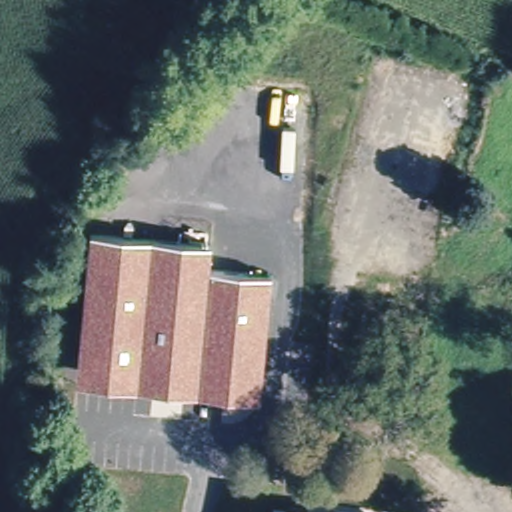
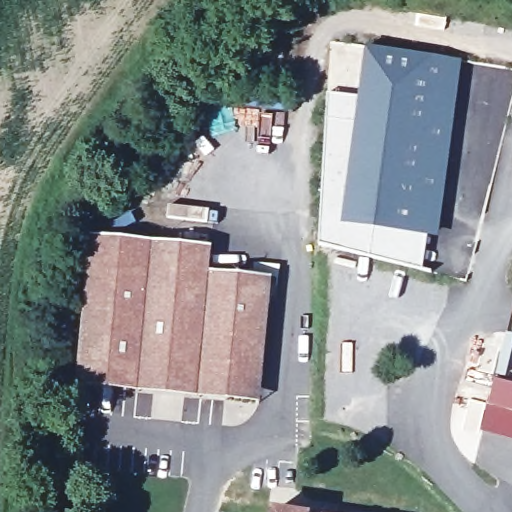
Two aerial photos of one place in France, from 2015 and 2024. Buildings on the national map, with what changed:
new [(360,97),(366,45),(462,60),(440,237),(428,236),(424,269),(321,243),(329,93),(360,97)]
unchanged [(211,245),(209,274),(273,276),(261,405),(79,388),(92,234),(211,245)]
new [(482,431),(496,380),(512,384),(512,439),(482,431)]
unchanged [(329,506),(357,509),(357,512),(328,512),(329,506)]
unchanged [(277,507),(316,512),(276,512),(277,507)]

